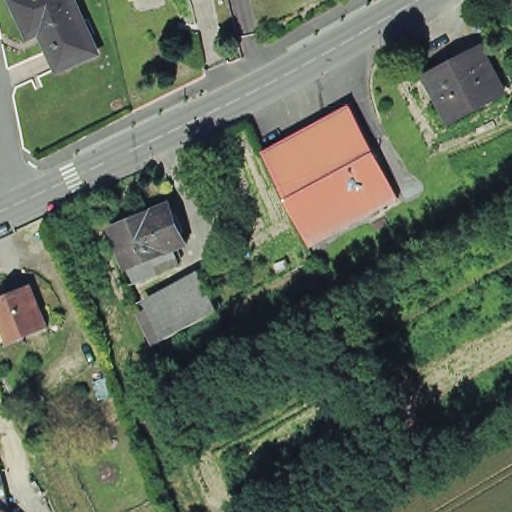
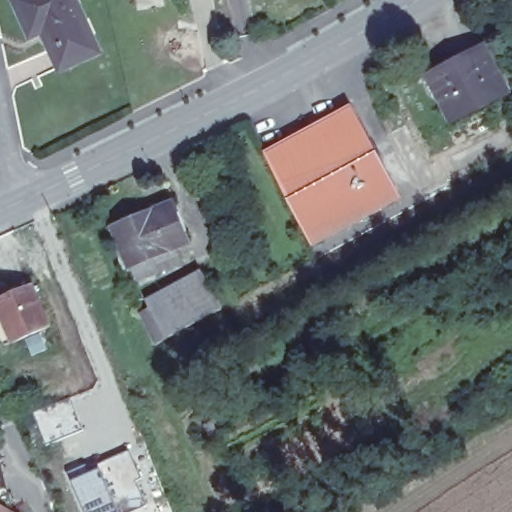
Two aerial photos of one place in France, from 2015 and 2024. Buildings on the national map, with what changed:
unchanged [(97,43),(60,59),(43,23),(30,28),(17,0),(76,0),(97,43)]
unchanged [(507,89),(450,118),(429,77),(485,47),(507,89)]
unchanged [(287,203),(263,156),(350,110),(375,157),(287,203)]
unchanged [(375,157),(400,202),(311,251),(287,203),(375,157)]
unchanged [(132,271),(125,255),(118,258),(112,243),(119,240),(112,220),(167,197),(181,234),(168,239),(175,254),(154,263),(132,271)]
unchanged [(132,314),(198,279),(212,305),(147,341),(132,314)]
unchanged [(0,296),(30,283),(47,325),(7,343),(0,328),(0,296)]
new [(73,398),(84,429),(45,445),(35,413),(73,398)]
new [(141,480),(135,482),(146,506),(134,512),(76,512),(61,481),(130,451),(141,480)]
unchanged [(10,512),(0,512),(0,483),(8,511),(10,512)]

